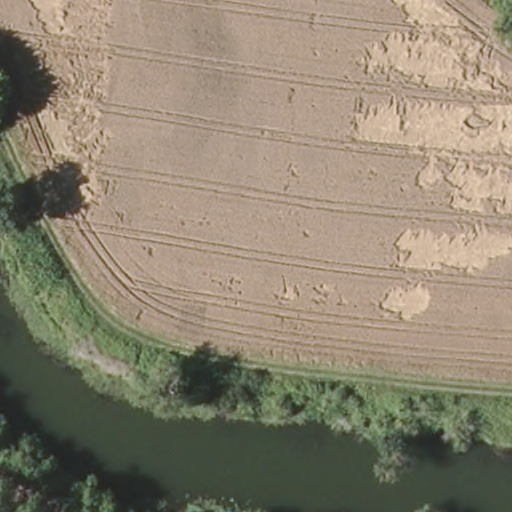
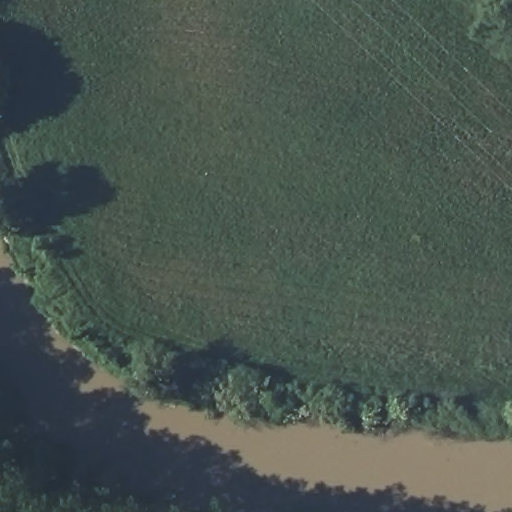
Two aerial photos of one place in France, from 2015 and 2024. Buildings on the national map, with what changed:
[]

